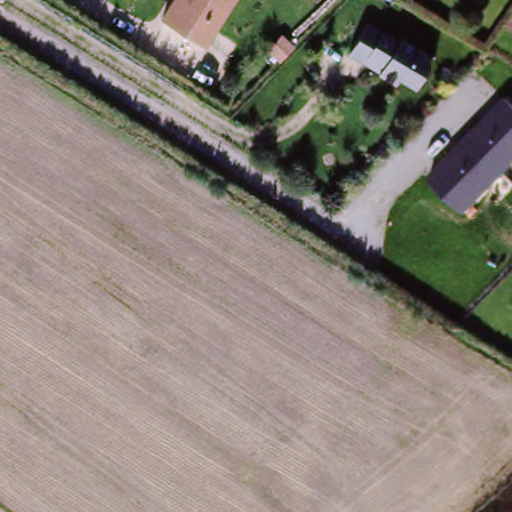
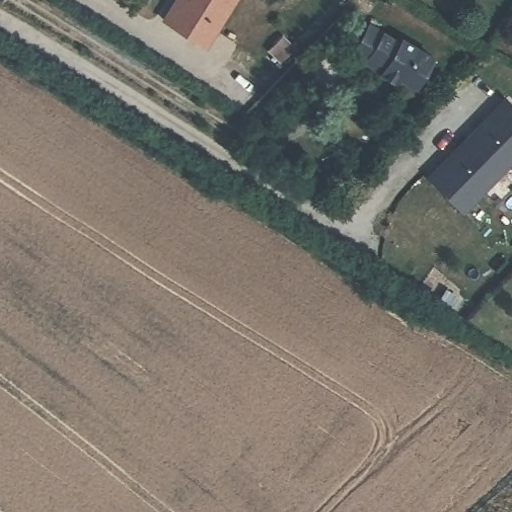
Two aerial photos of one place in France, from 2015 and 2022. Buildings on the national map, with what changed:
unchanged [(208,48),(166,20),(179,0),(240,0),(208,48)]
unchanged [(432,56),(411,90),(348,61),(367,24),(432,56)]
unchanged [(512,106),(512,163),(461,214),(426,177),(503,98),(512,106)]

